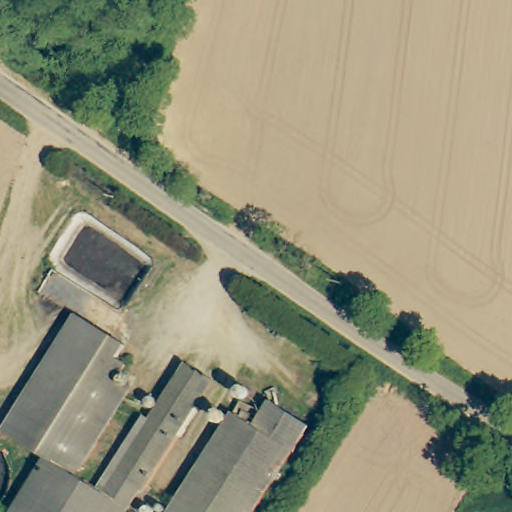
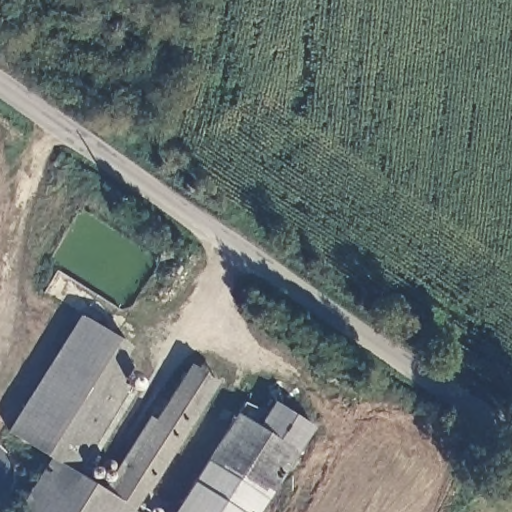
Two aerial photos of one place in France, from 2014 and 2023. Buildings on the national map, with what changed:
unchanged [(106,355),(119,362),(111,376),(126,385),(74,470),(93,481),(106,489),(169,387),(196,404),(128,512),(10,512),(46,453),(5,427),(76,313),(117,337),(106,355)]
unchanged [(186,360),(213,376),(196,404),(169,387),(186,360)]
unchanged [(172,512),(235,411),(242,415),(247,409),(254,413),(249,420),(257,425),(274,398),(312,421),(256,512),(172,512)]

